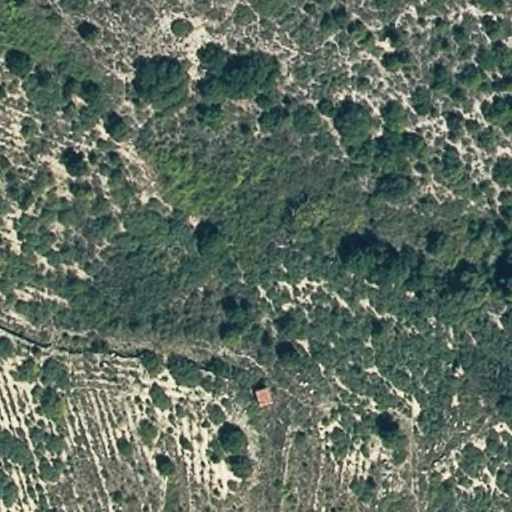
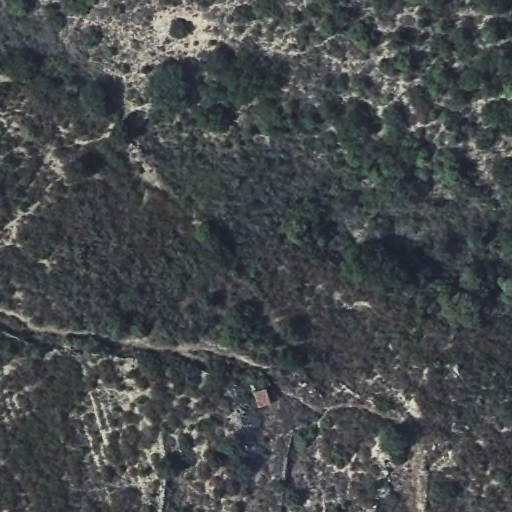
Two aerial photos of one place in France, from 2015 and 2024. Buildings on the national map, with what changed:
unchanged [(274,389),(280,404),(257,409),(253,391),(274,389)]

